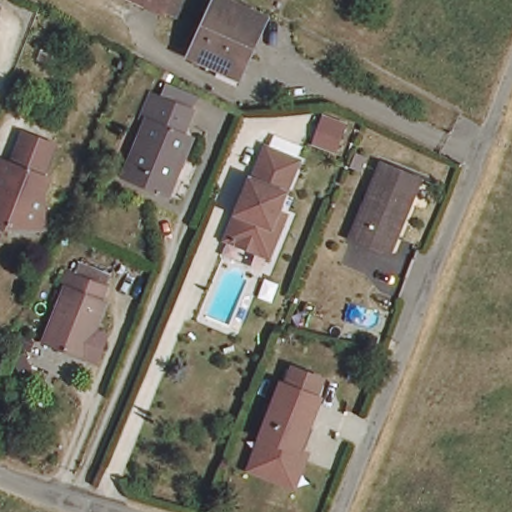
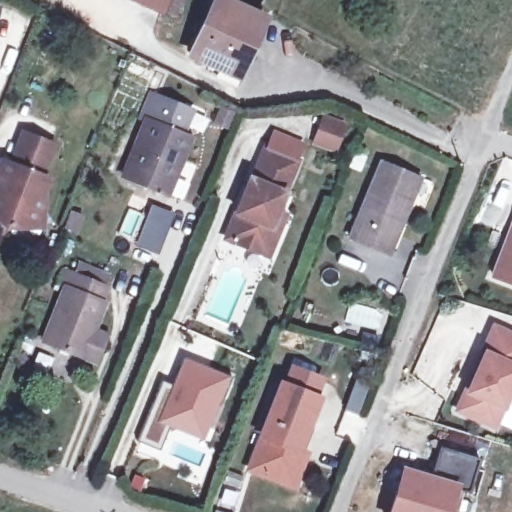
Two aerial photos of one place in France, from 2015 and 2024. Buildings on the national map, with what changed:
unchanged [(163,27),(109,0),(173,0),(163,27)]
unchanged [(215,1),(257,19),(243,53),(245,57),(245,59),(238,76),(217,67),(215,71),(190,61),(200,37),(215,1)]
unchanged [(190,139),(167,195),(123,176),(145,119),(141,117),(149,95),(190,111),(180,134),(190,139)]
unchanged [(347,118),(335,153),(311,143),(322,112),(347,118)]
unchanged [(27,221),(3,221),(0,219),(0,156),(8,159),(15,140),(20,127),(50,139),(45,151),(37,170),(45,173),(40,186),(40,207),(39,222),(27,221)]
unchanged [(282,228),(271,254),(228,236),(252,177),(256,177),(268,146),(275,149),(280,134),(300,141),(294,156),(298,158),(278,208),(288,212),(282,228)]
unchanged [(380,259),(350,245),(385,172),(422,188),(408,219),(400,215),(380,259)]
new [(177,214),(160,255),(138,246),(155,205),(177,214)]
new [(512,235),(512,302),(490,293),(512,235)]
unchanged [(102,311),(80,365),(42,348),(62,295),(59,293),(64,280),(72,283),(77,271),(107,282),(102,295),(96,309),(102,311)]
new [(512,331),(512,403),(508,413),(502,410),(495,430),(453,413),(490,322),(512,331)]
new [(160,378),(170,382),(182,356),(231,376),(205,441),(167,427),(158,447),(138,440),(160,378)]
unchanged [(297,447),(307,451),(300,470),(292,466),(272,474),(250,465),(285,383),(286,384),(293,366),(323,379),(317,397),(319,398),(297,447)]
new [(441,471),(450,439),(490,450),(480,485),(466,481),(457,510),(456,512),(400,512),(414,463),(441,471)]
new [(227,471),(242,475),(233,507),(218,503),(227,471)]

